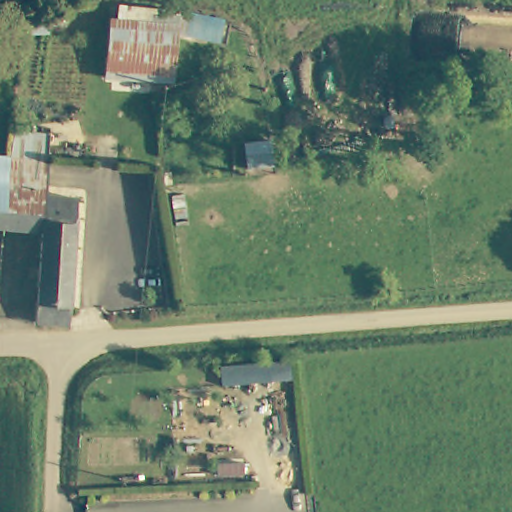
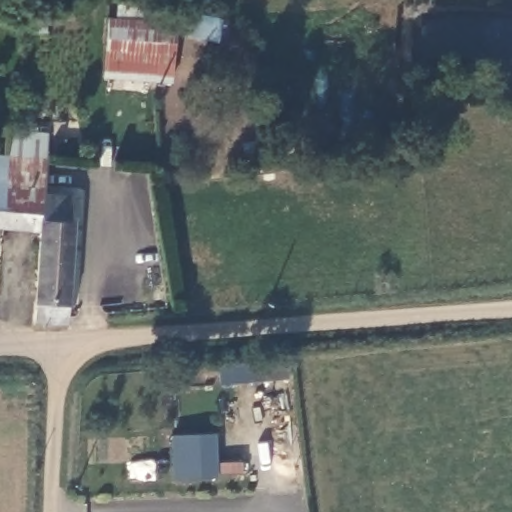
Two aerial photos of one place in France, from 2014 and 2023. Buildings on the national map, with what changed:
unchanged [(174,69),(104,69),(103,25),(174,26),(174,69)]
unchanged [(0,227),(0,199),(3,157),(5,132),(42,134),(40,162),(39,196),(69,197),(68,218),(64,315),(63,323),(31,323),(37,227),(0,227)]
unchanged [(3,157),(0,199),(0,158),(3,157)]
new [(170,434),(212,431),(216,476),(173,478),(170,434)]

